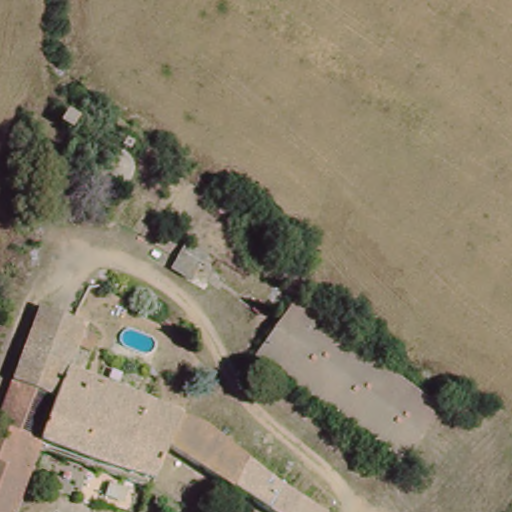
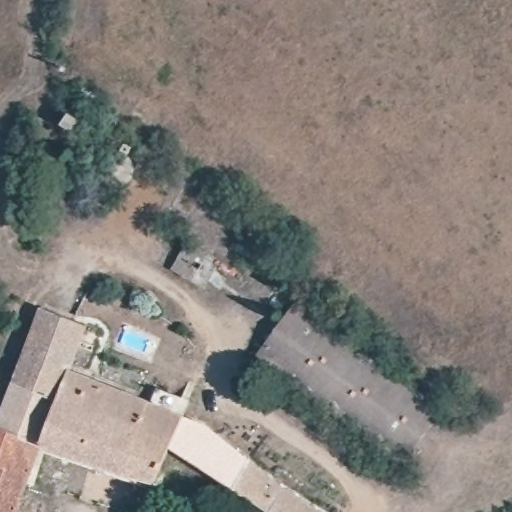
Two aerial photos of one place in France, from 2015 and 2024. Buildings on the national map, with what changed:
unchanged [(117,151),(122,142),(133,150),(128,159),(117,151)]
unchanged [(443,410),(403,470),(254,363),(295,307),(443,410)]
unchanged [(314,512),(259,512),(163,450),(149,484),(40,441),(14,512),(0,512),(0,413),(37,312),(94,334),(85,354),(75,350),(67,368),(163,410),(196,424),(314,512)]

